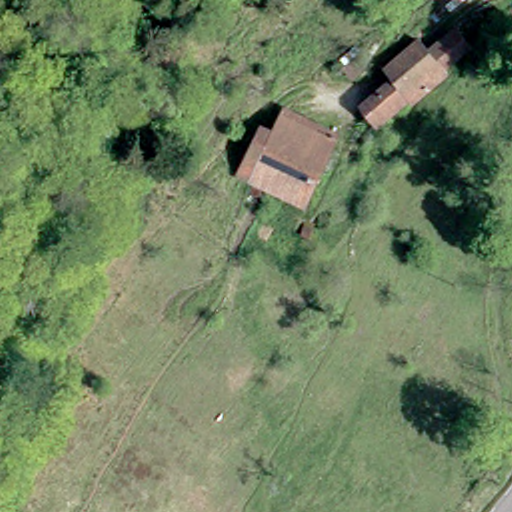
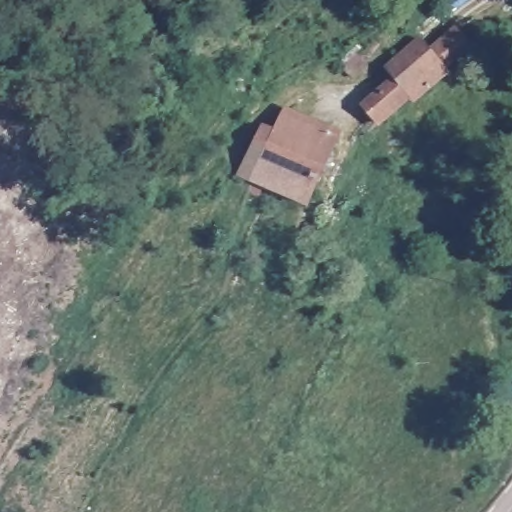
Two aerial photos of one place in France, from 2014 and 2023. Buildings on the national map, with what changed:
unchanged [(407,94),(396,80),(429,50),(442,65),(469,40),(485,58),(457,81),(459,84),(422,116),(421,114),(392,139),(377,121),(407,94)]
unchanged [(338,142),(307,211),(271,196),(253,189),(285,116),(338,142)]

